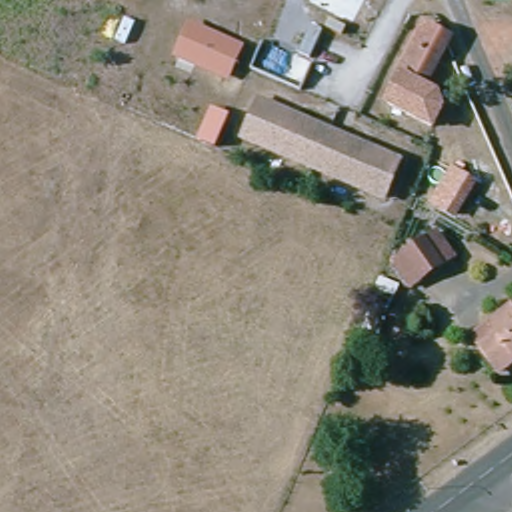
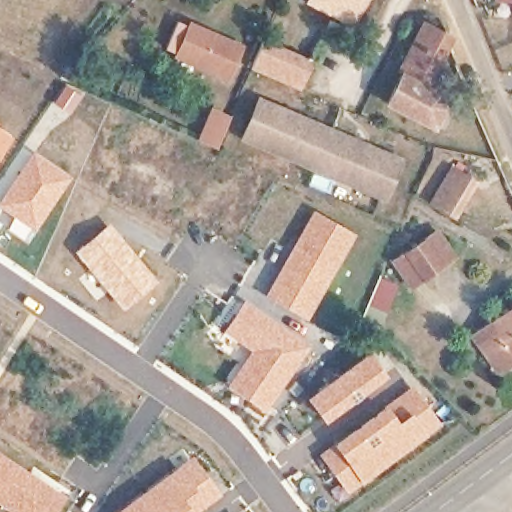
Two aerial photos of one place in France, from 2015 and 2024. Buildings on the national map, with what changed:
new [(366,0),(351,28),(303,2),(304,0),(366,0)]
unchanged [(512,0),(512,7),(495,6),(496,0),(512,0)]
unchanged [(447,45),(426,86),(438,92),(443,105),(433,125),(387,101),(402,73),(399,71),(423,23),(441,31),(451,37),(447,45)]
unchanged [(233,64),(183,54),(189,24),(239,33),(233,64)]
new [(263,38),(316,61),(302,90),(250,68),(263,38)]
new [(65,83),(83,94),(65,120),(52,110),(46,119),(42,116),(65,83)]
unchanged [(385,200),(243,140),(260,101),(401,161),(385,200)]
new [(0,153),(0,126),(12,135),(0,153)]
new [(73,176),(28,244),(0,225),(0,195),(32,148),(73,176)]
unchanged [(473,184),(453,219),(432,207),(451,172),(473,184)]
new [(312,209),(357,234),(307,320),(263,295),(312,209)]
new [(108,222),(157,282),(122,309),(73,251),(108,222)]
unchanged [(394,264),(406,256),(437,234),(454,258),(423,280),(412,288),(394,264)]
new [(379,274),(401,285),(381,329),(359,319),(379,274)]
new [(244,298),(312,342),(265,413),(225,385),(248,350),(222,331),(244,298)]
unchanged [(489,327),(512,311),(512,365),(499,374),(482,349),(474,338),(489,327)]
new [(370,350),(388,377),(324,424),(304,397),(370,350)]
new [(411,383),(442,427),(346,493),(317,453),(411,383)]
new [(33,466),(70,496),(57,512),(10,512),(0,505),(0,452),(29,471),(33,466)]
new [(192,454),(221,495),(198,512),(113,512),(192,454)]

